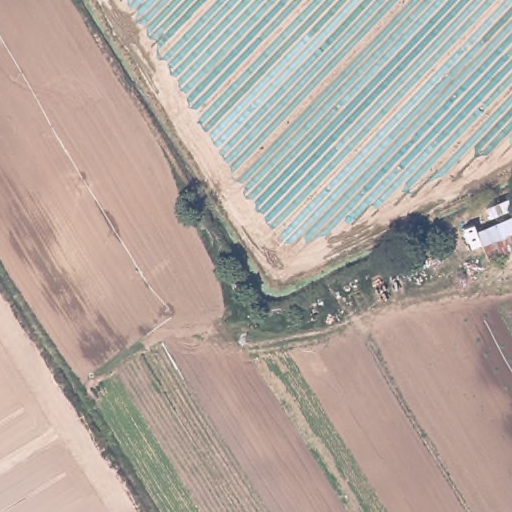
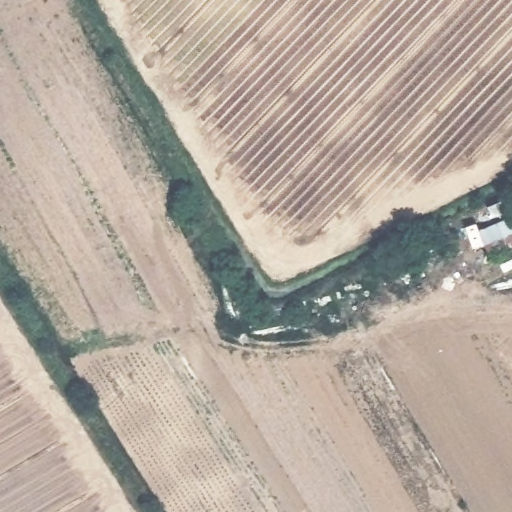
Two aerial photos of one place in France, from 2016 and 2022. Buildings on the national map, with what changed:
[]

